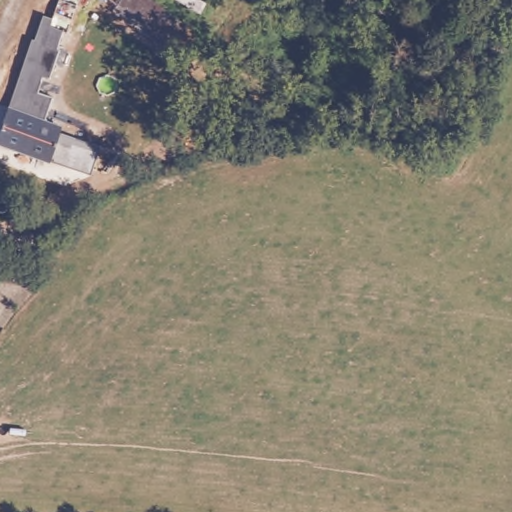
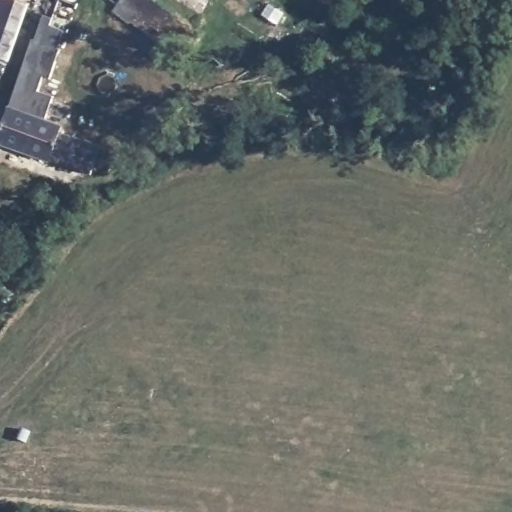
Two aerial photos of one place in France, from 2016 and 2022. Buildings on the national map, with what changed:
unchanged [(54,22),(61,0),(84,0),(72,28),(54,22)]
unchanged [(121,0),(166,0),(206,31),(192,51),(121,0)]
unchanged [(89,174),(86,177),(0,144),(0,137),(26,52),(46,59),(36,91),(49,97),(41,119),(60,126),(61,131),(92,142),(100,135),(112,140),(112,157),(104,175),(89,174)]
unchanged [(19,267),(4,255),(22,226),(41,240),(25,264),(19,267)]

